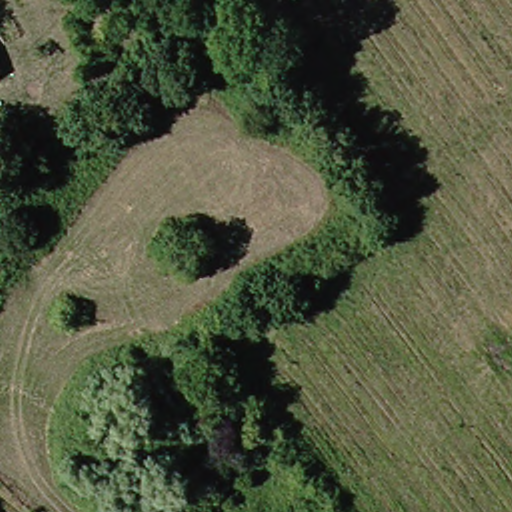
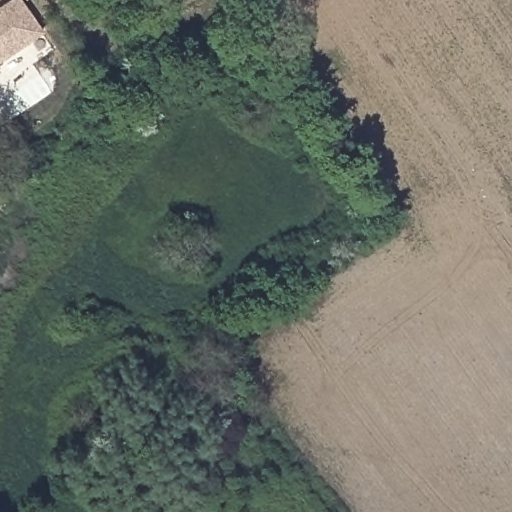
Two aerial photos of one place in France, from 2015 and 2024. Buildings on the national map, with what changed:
new [(0,65),(0,8),(12,0),(20,0),(45,35),(0,65)]

